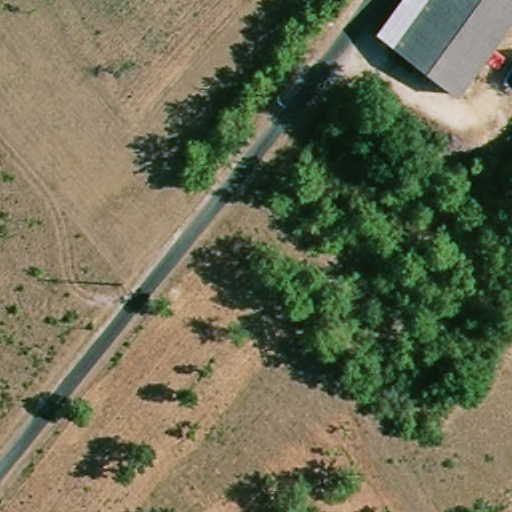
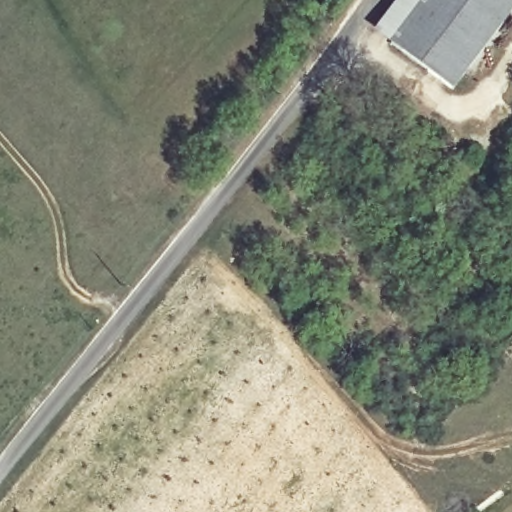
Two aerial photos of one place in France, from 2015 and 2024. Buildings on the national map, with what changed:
unchanged [(431,0),(512,0),(512,15),(455,87),(398,41),(431,0)]

